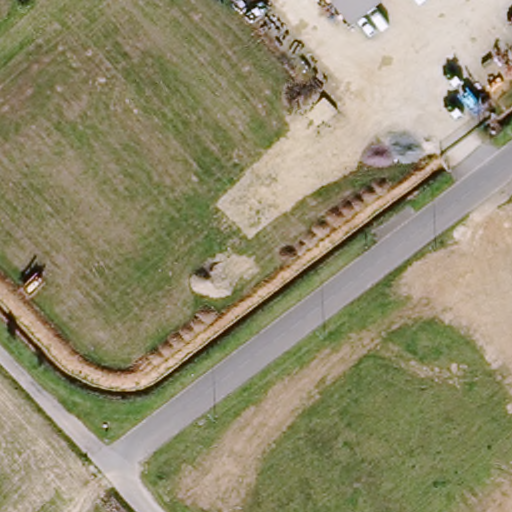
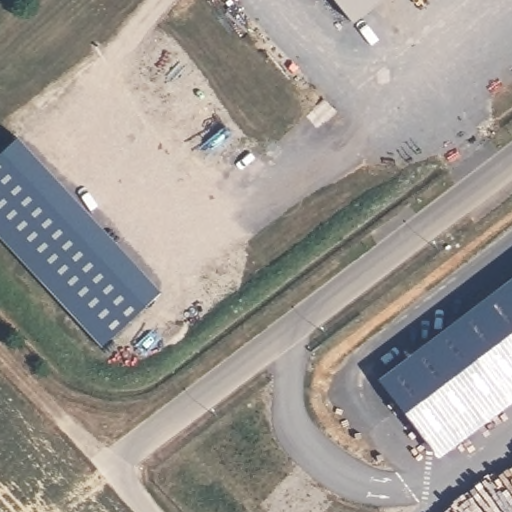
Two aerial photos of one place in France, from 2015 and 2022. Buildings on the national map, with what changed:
unchanged [(343,18),(329,0),(367,0),(343,18)]
new [(157,298),(104,347),(0,235),(0,156),(13,144),(157,298)]
new [(483,307),(512,285),(512,345),(483,307)]
new [(500,395),(452,330),(483,307),(512,345),(512,386),(500,395)]
new [(437,457),(377,379),(447,325),(452,330),(500,395),(512,386),(512,400),(437,457)]

